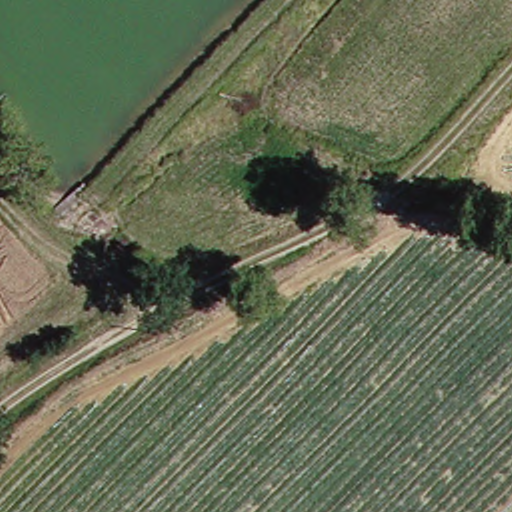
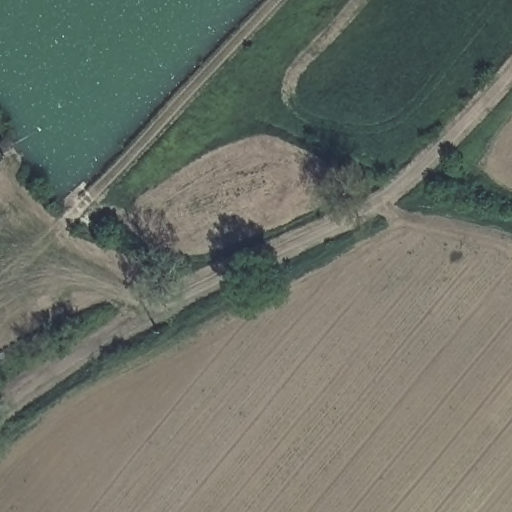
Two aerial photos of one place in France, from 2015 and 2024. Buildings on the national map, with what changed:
unchanged [(26,139),(30,146),(21,151),(17,144),(26,139)]

